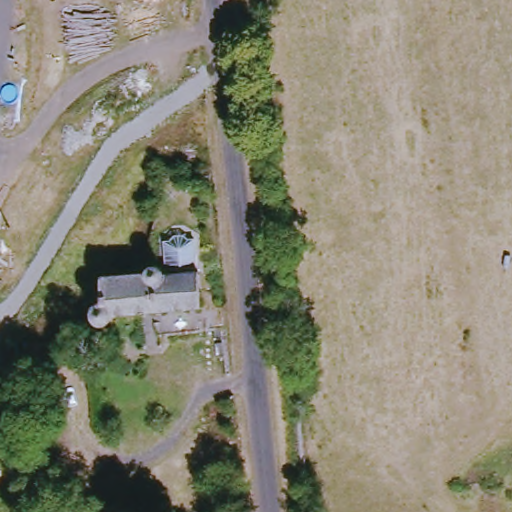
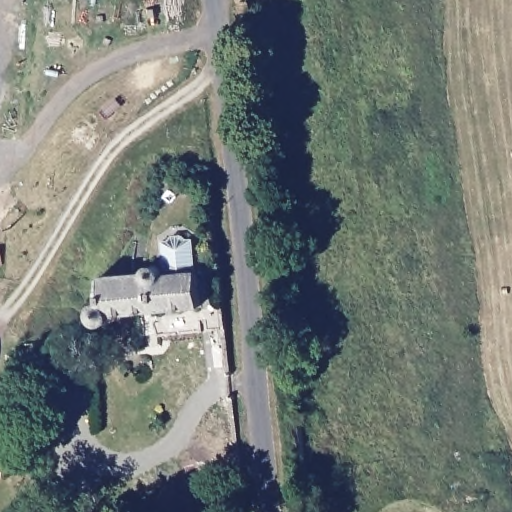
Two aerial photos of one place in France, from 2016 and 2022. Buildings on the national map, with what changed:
unchanged [(161,272),(160,239),(165,239),(172,234),(181,234),(185,238),(192,238),(193,271),(161,272)]
unchanged [(93,318),(91,314),(90,310),(92,306),(94,303),(98,301),(97,275),(135,273),(137,269),(140,265),(144,264),(148,263),(152,265),(156,268),(158,272),(161,272),(193,271),(195,271),(197,307),(110,311),(109,315),(107,318),(103,320),(100,321),(97,320),(93,318)]

